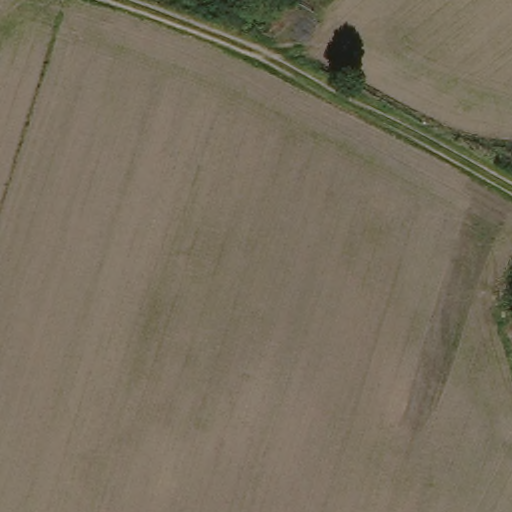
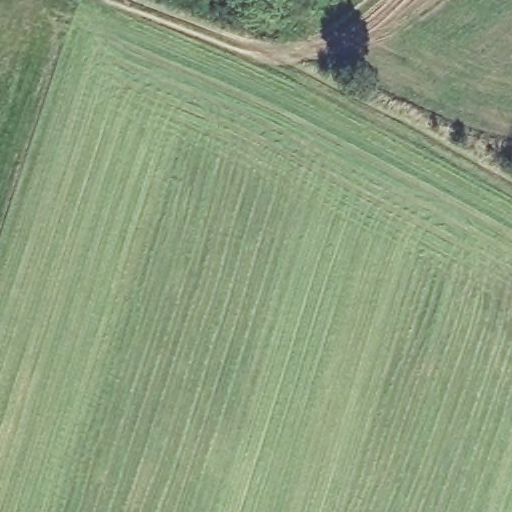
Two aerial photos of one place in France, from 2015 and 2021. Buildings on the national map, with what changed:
[]

